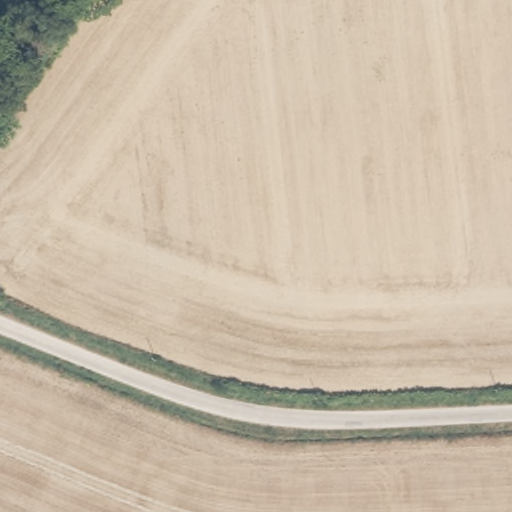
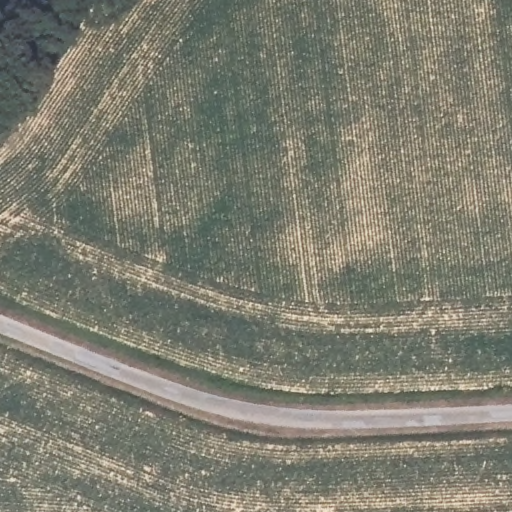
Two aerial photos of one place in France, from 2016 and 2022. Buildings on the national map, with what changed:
[]

